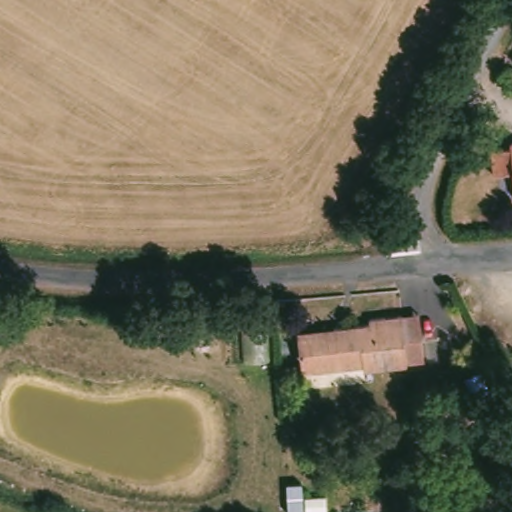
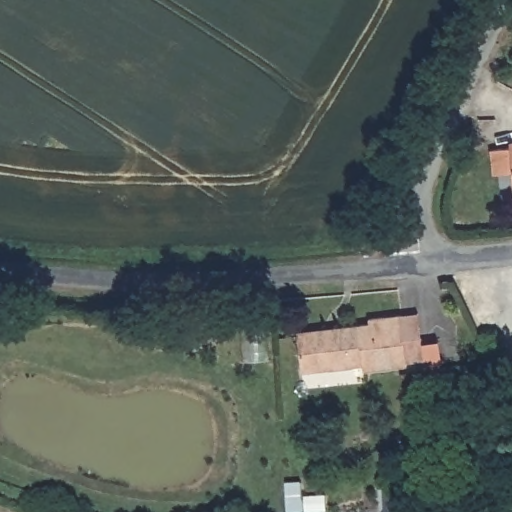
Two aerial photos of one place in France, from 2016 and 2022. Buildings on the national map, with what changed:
unchanged [(496,172),(495,149),(512,148),(512,172),(496,172)]
unchanged [(340,325),(375,320),(375,315),(409,311),(427,309),(430,339),(432,359),(415,361),(415,364),(368,369),(367,365),(305,371),(302,332),(340,329),(340,325)]

